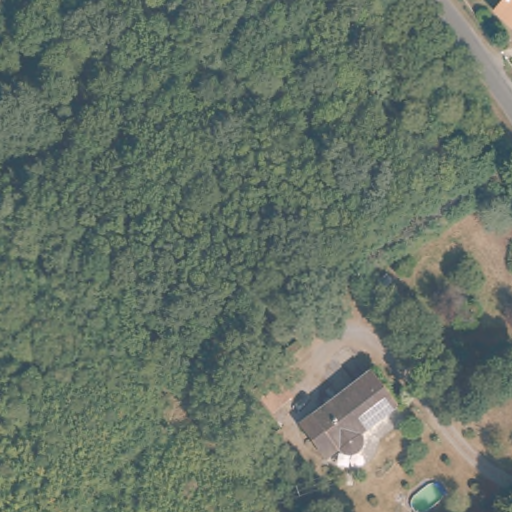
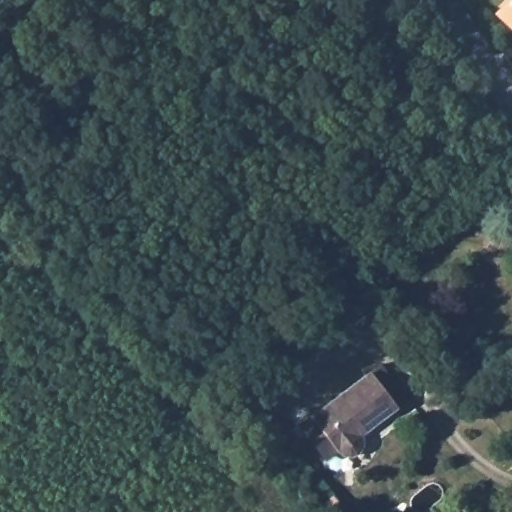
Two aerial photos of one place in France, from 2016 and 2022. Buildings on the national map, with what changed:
unchanged [(509,0),(512,0),(512,4),(509,0)]
unchanged [(376,373),(404,407),(365,439),(368,451),(363,456),(348,452),(337,462),(309,427),(376,373)]
unchanged [(273,383),(292,406),(272,422),(253,399),(273,383)]

